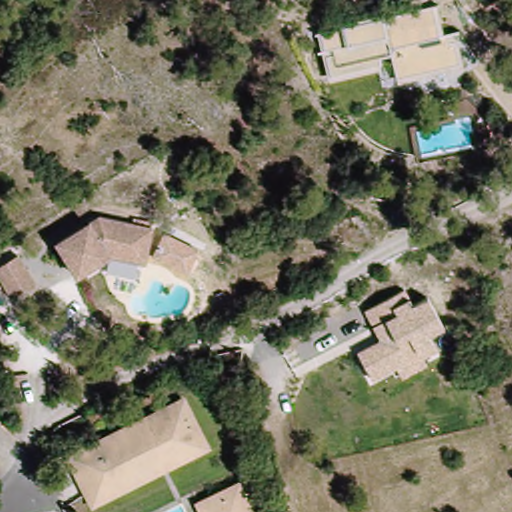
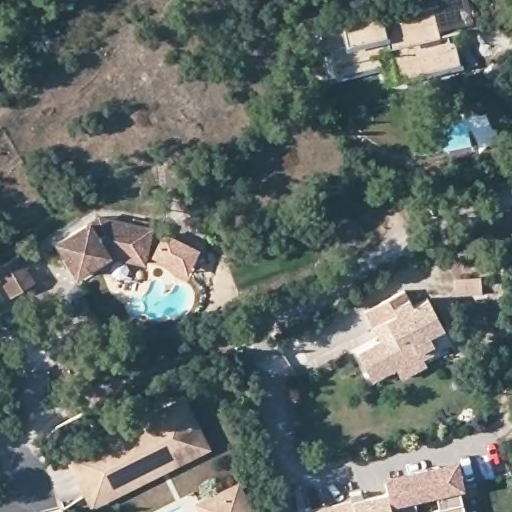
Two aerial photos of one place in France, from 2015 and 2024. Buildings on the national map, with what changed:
unchanged [(394,65),(328,82),(318,26),(438,1),(454,66),(398,80),(394,65)]
unchanged [(88,223),(93,231),(97,216),(153,231),(144,268),(113,260),(77,282),(54,244),(88,223)]
unchanged [(164,233),(198,249),(188,272),(153,256),(164,233)]
unchanged [(0,282),(0,273),(23,260),(40,290),(13,305),(0,282)]
new [(476,281),(475,294),(458,293),(458,280),(476,281)]
unchanged [(358,352),(379,340),(365,312),(406,291),(409,300),(412,305),(428,298),(444,330),(430,337),(435,349),(422,356),(427,365),(402,378),(397,369),(374,381),(358,352)]
new [(484,301),(483,321),(466,320),(467,301),(484,301)]
unchanged [(93,509),(69,466),(175,405),(200,447),(164,467),(116,495),(93,509)]
new [(383,491),(379,478),(453,460),(459,489),(455,490),(460,512),(388,512),(386,506),(383,491)]
unchanged [(259,512),(206,512),(202,503),(244,482),(259,512)]
new [(383,491),(386,506),(388,512),(294,512),(294,510),(383,491)]

